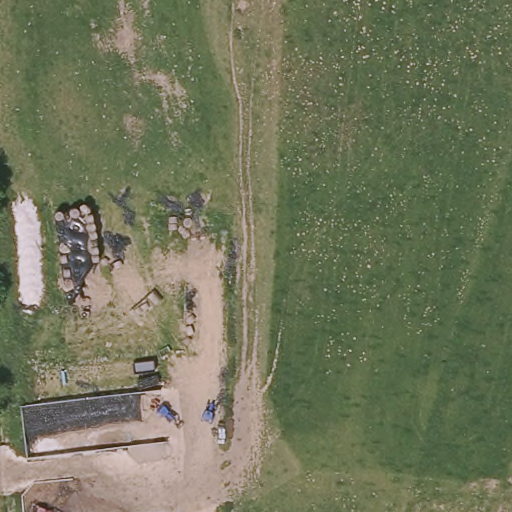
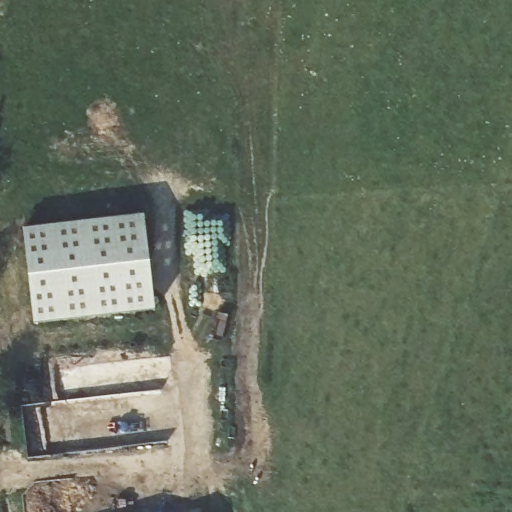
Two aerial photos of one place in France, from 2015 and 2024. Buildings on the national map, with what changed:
new [(144,216),(156,311),(33,325),(22,230),(144,216)]

